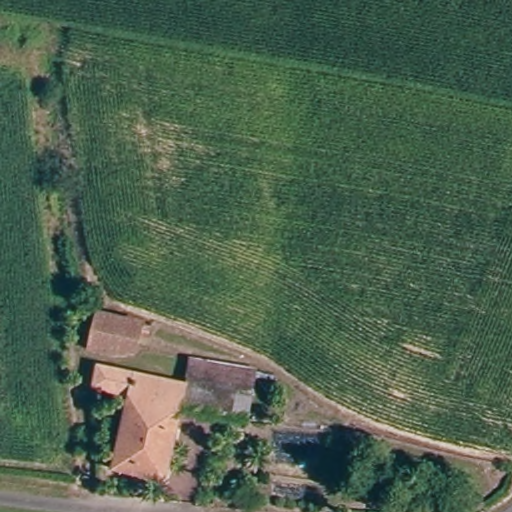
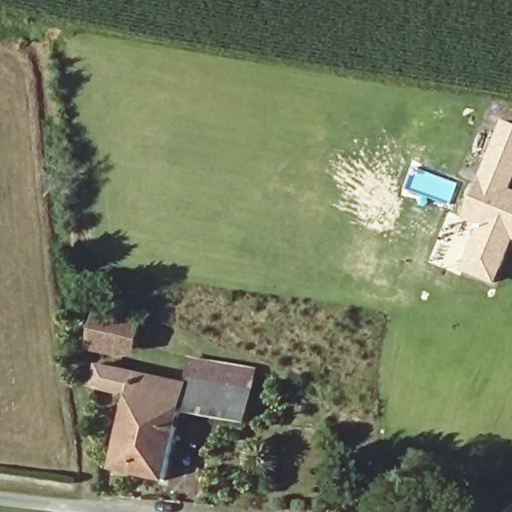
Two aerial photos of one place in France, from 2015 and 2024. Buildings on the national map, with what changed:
new [(512,124),(512,186),(511,189),(512,190),(512,246),(495,285),(458,272),(441,265),(463,221),(503,120),(512,124)]
unchanged [(141,323),(138,344),(116,341),(114,354),(90,350),(96,315),(141,323)]
new [(190,378),(197,358),(261,374),(256,394),(190,378)]
unchanged [(188,386),(190,378),(256,394),(248,426),(246,425),(233,422),(214,418),(181,411),(165,482),(113,470),(129,400),(131,393),(102,386),(106,367),(188,386)]

